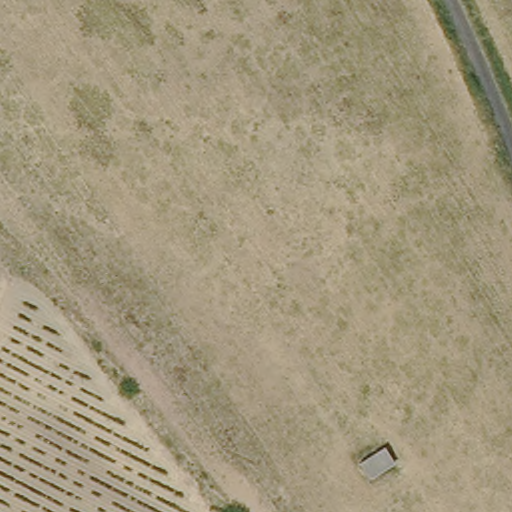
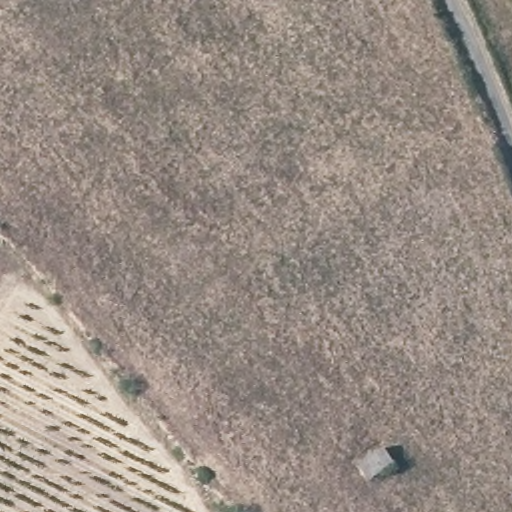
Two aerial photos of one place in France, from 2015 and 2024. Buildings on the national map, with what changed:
unchanged [(364,474),(355,456),(388,439),(400,459),(364,474)]

